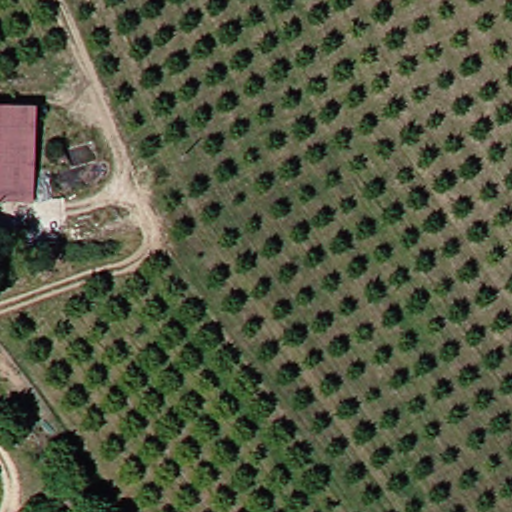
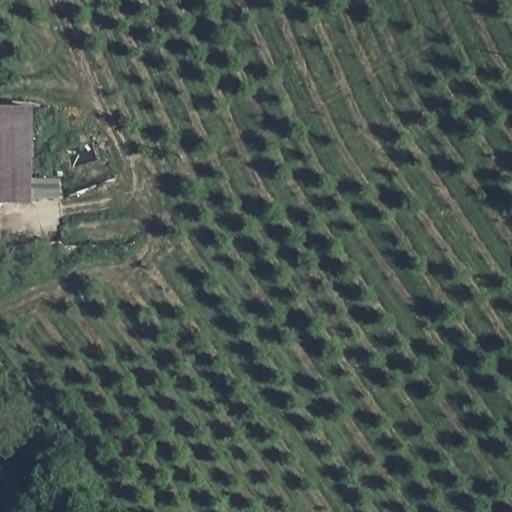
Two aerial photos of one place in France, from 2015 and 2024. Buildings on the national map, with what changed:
unchanged [(47,203),(0,204),(0,109),(47,108),(47,203)]

